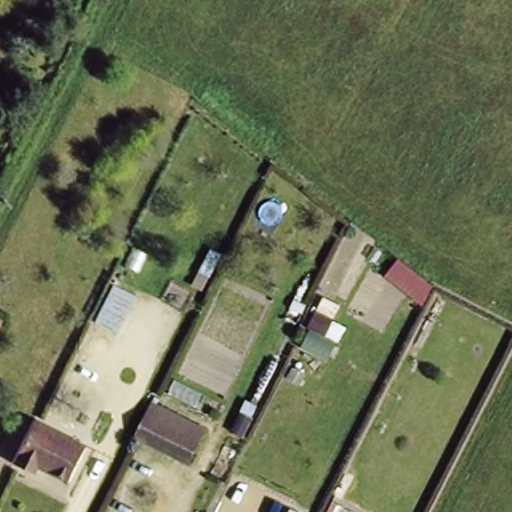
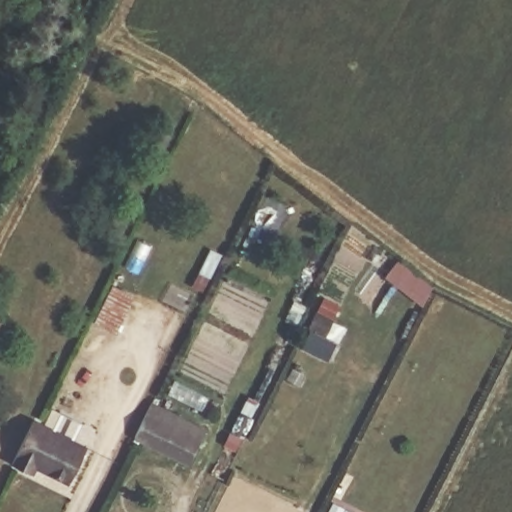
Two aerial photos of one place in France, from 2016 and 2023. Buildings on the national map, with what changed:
unchanged [(434,283),(420,306),(380,279),(398,255),(434,283)]
unchanged [(341,303),(334,317),(346,324),(328,361),(299,346),(322,294),(341,303)]
unchanged [(131,442),(151,400),(204,426),(188,465),(131,442)]
unchanged [(81,443),(67,471),(41,459),(36,469),(14,458),(35,419),(81,443)]
unchanged [(333,499),(359,512),(326,512),(333,499)]

